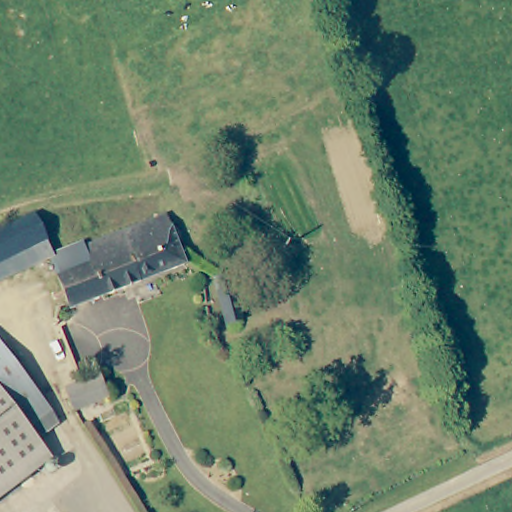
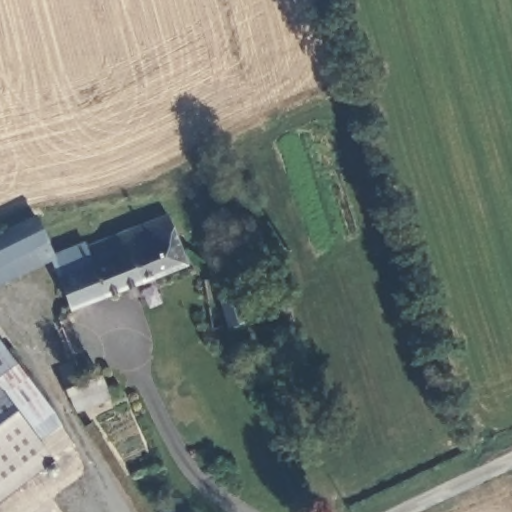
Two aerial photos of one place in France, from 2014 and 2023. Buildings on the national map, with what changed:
unchanged [(41,232),(52,262),(0,286),(0,228),(33,214),(41,232)]
unchanged [(95,247),(163,221),(181,265),(72,309),(52,262),(95,247)]
unchanged [(215,277),(230,275),(235,321),(220,322),(215,277)]
unchanged [(41,441),(0,389),(0,340),(64,422),(41,441)]
unchanged [(80,407),(69,383),(99,372),(108,396),(80,407)]
unchanged [(55,457),(0,498),(0,389),(41,441),(55,457)]

